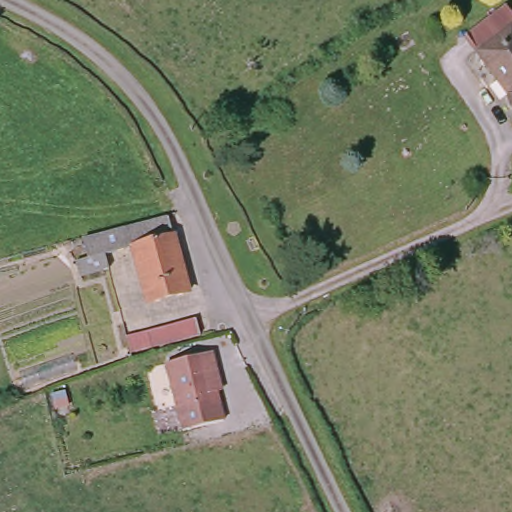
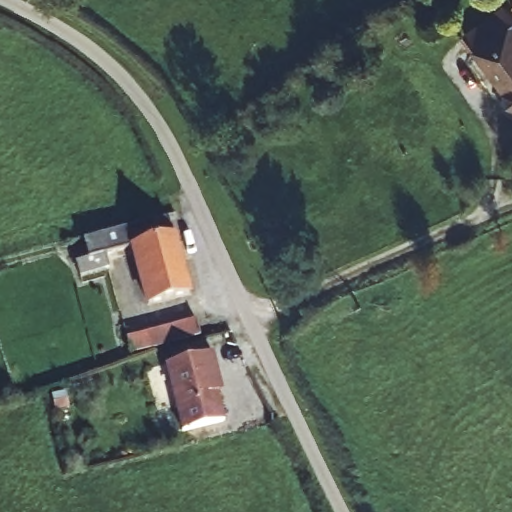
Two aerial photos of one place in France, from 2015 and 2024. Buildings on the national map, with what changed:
unchanged [(470,33),(512,1),(512,88),(470,33)]
unchanged [(189,298),(150,309),(134,249),(108,255),(113,271),(78,280),(73,260),(88,255),(83,236),(166,214),(189,298)]
unchanged [(129,361),(121,339),(191,313),(200,337),(129,361)]
unchanged [(224,415),(189,428),(167,369),(210,354),(215,369),(208,372),(224,415)]

